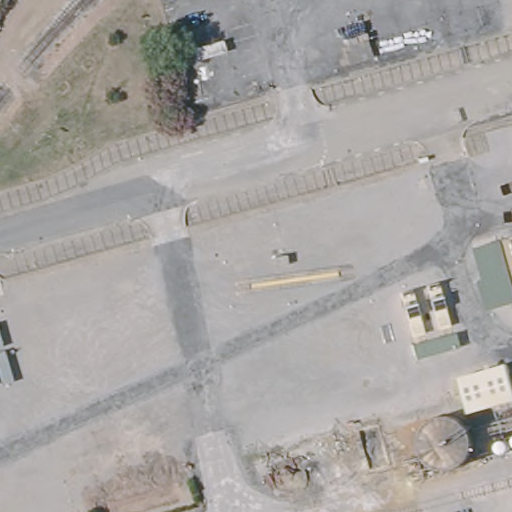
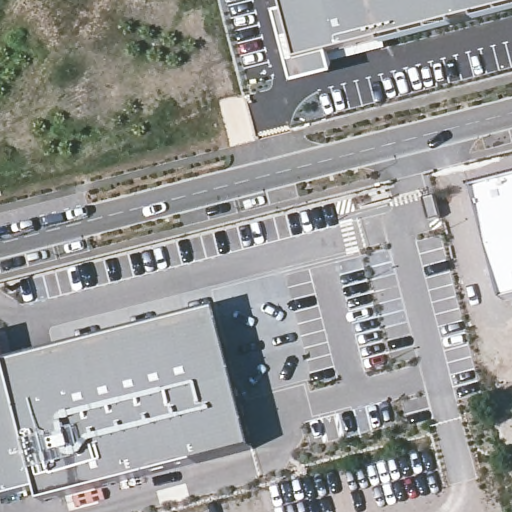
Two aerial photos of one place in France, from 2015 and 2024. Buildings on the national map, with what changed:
new [(296,86),(290,66),(278,15),(288,13),(284,0),(512,0),(512,13),(463,24),(405,42),(380,52),(351,59),(350,53),(335,57),(339,77),(296,86)]
new [(512,180),(512,298),(505,299),(475,189),(512,180)]
demolished [(487,313),(474,247),(512,237),(512,306),(487,313)]
new [(9,365),(216,308),(254,446),(42,502),(39,488),(0,498),(0,335),(1,335),(9,365)]
demolished [(507,366),(512,382),(512,403),(472,415),(461,380),(500,368),(507,366)]
demolished [(499,455),(491,423),(512,417),(512,452),(499,455)]
demolished [(377,424),(389,463),(370,469),(358,430),(377,424)]

